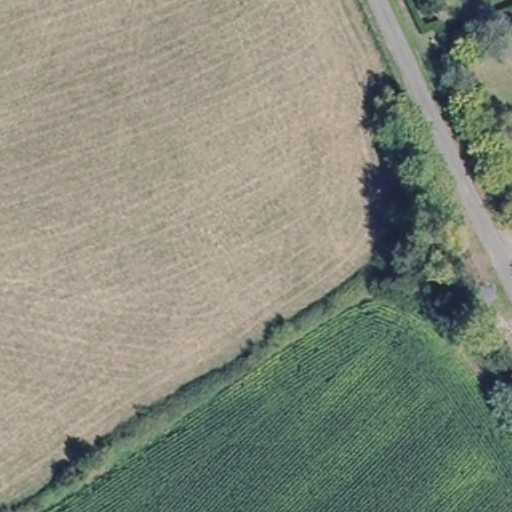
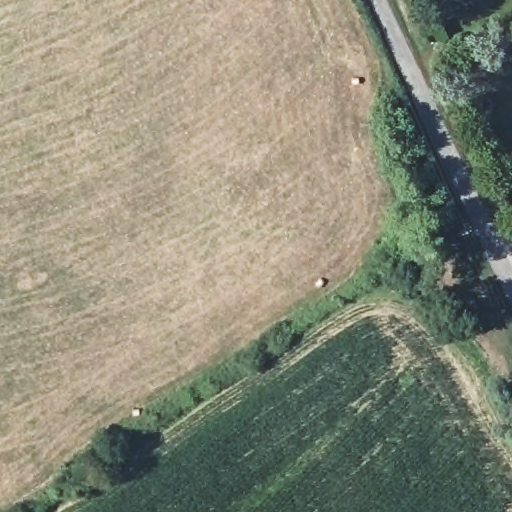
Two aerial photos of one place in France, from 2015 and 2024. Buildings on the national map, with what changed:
[]

